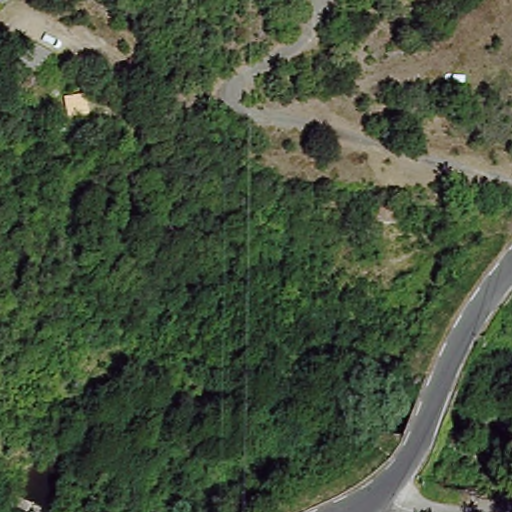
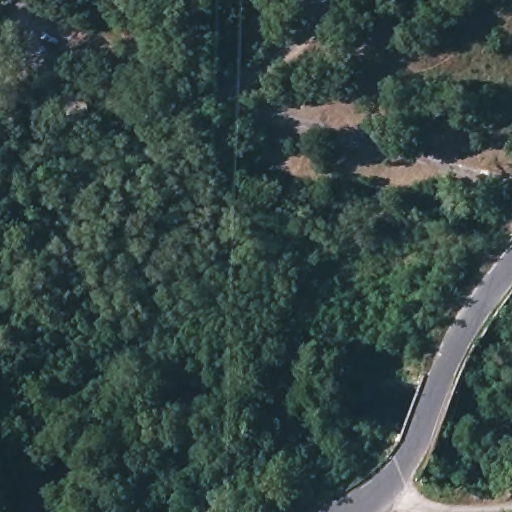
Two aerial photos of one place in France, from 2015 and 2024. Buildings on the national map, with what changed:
unchanged [(89,115),(70,118),(69,99),(90,99),(89,115)]
unchanged [(363,214),(340,213),(338,188),(364,188),(363,214)]

